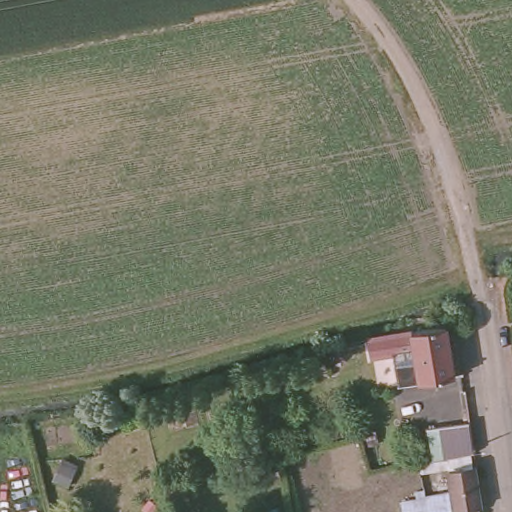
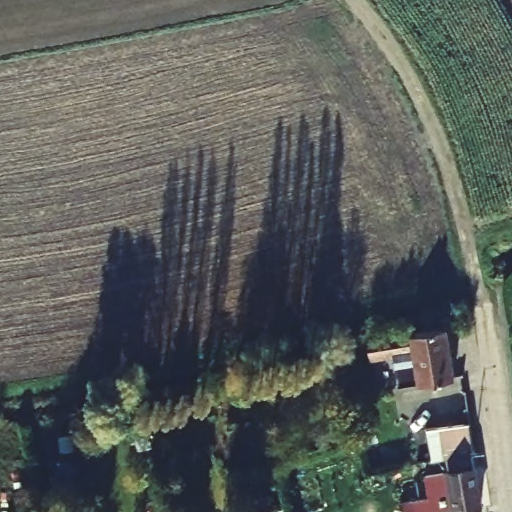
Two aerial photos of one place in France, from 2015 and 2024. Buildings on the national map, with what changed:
unchanged [(455,381),(400,390),(396,358),(372,360),(370,343),(446,331),(455,381)]
unchanged [(440,465),(424,468),(419,436),(461,429),(467,460),(462,461),(440,465)]
unchanged [(464,474),(470,473),(478,512),(435,512),(433,501),(445,500),(440,465),(462,461),(464,474)]
unchanged [(412,504),(425,503),(427,512),(413,512),(412,504)]

